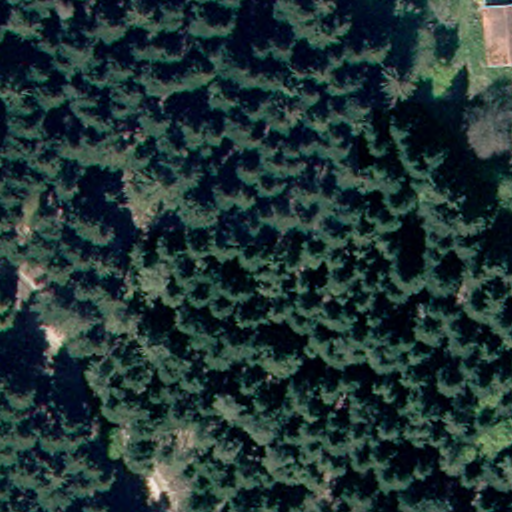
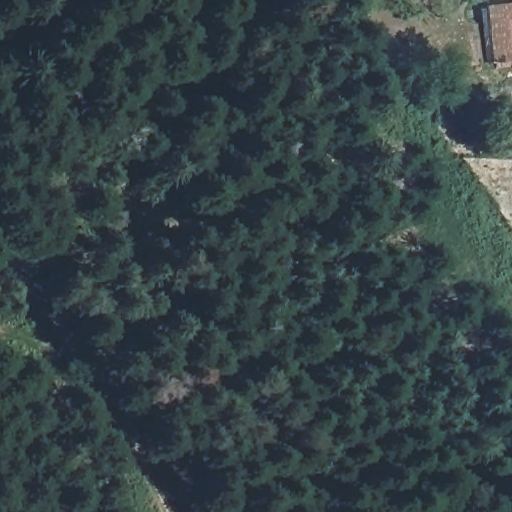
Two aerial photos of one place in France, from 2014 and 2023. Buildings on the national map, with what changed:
unchanged [(487,10),(485,0),(503,0),(504,9),(512,7),(512,63),(494,66),(487,10)]

